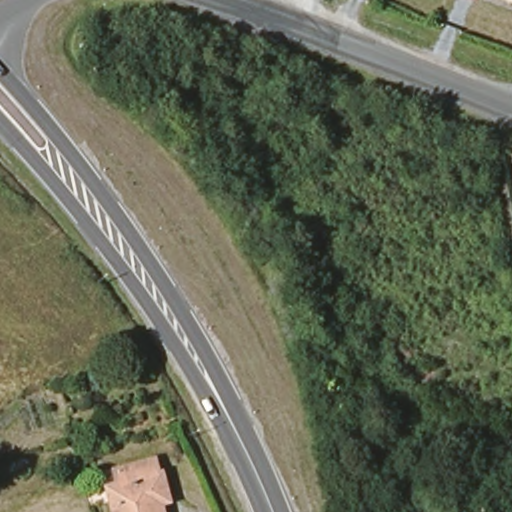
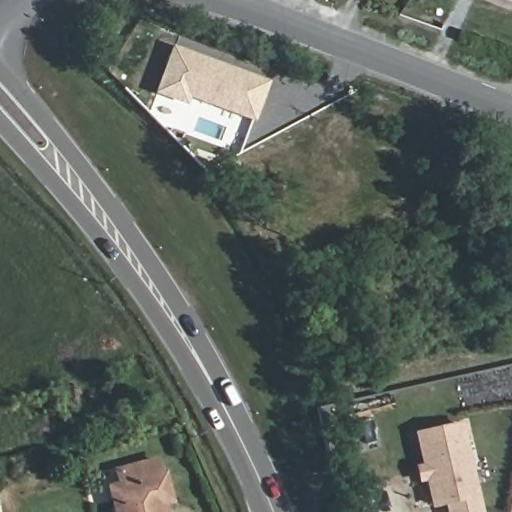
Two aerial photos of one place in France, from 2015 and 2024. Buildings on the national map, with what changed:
new [(173,46),(269,81),(256,121),(186,100),(185,105),(155,92),(173,46)]
new [(479,512),(449,512),(446,501),(433,503),(417,432),(460,424),(479,512)]
unchanged [(161,505),(163,512),(116,512),(110,490),(121,487),(117,472),(155,462),(167,502),(161,505)]

